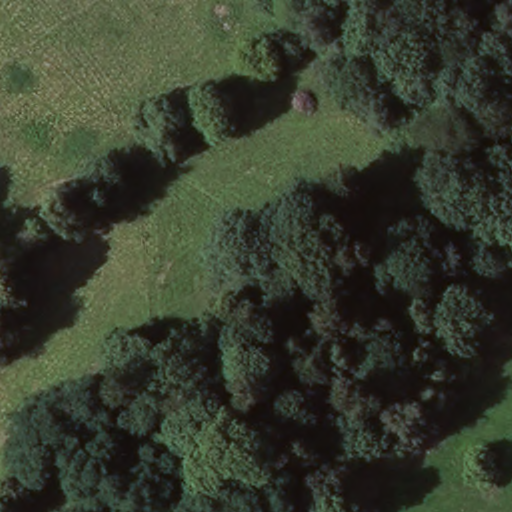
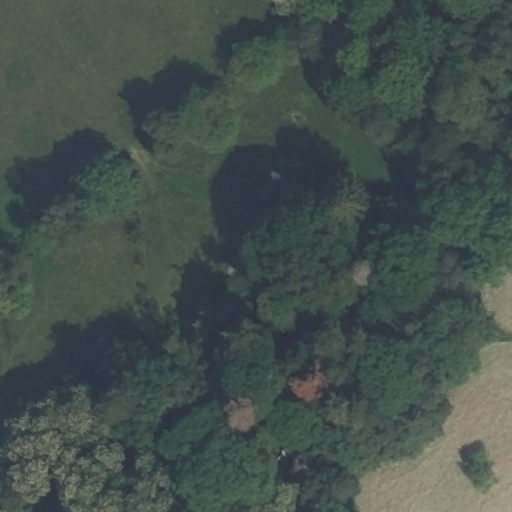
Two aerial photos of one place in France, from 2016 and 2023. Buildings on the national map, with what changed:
unchanged [(334,512),(305,512),(304,507),(331,500),(334,512)]

